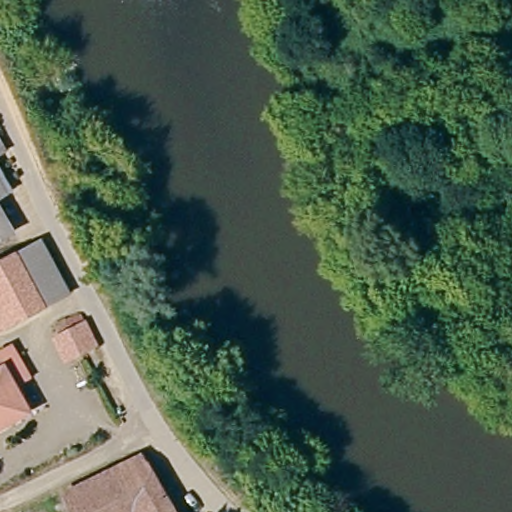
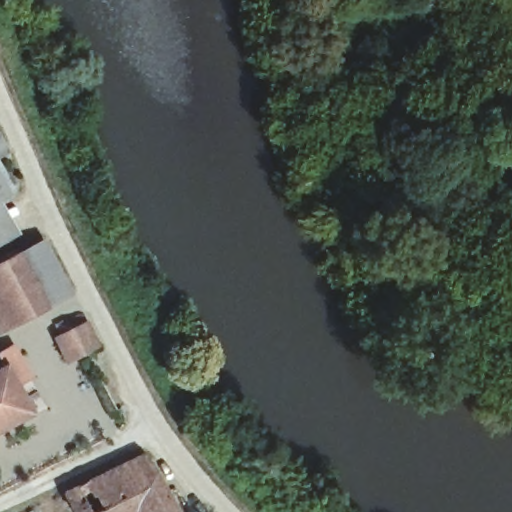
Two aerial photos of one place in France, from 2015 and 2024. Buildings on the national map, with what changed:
unchanged [(0,153),(0,139),(6,150),(0,153)]
unchanged [(0,197),(0,180),(7,194),(0,197)]
unchanged [(0,240),(0,236),(1,239),(0,240)]
unchanged [(67,288),(43,302),(17,256),(42,244),(67,288)]
unchanged [(0,329),(0,266),(17,256),(43,302),(0,329)]
unchanged [(69,365),(57,346),(60,343),(56,336),(72,326),(78,337),(89,330),(98,348),(69,365)]
unchanged [(14,351),(22,366),(29,379),(13,387),(27,415),(0,430),(0,358),(2,357),(14,351)]
unchanged [(72,512),(64,495),(138,455),(168,512),(72,512)]

